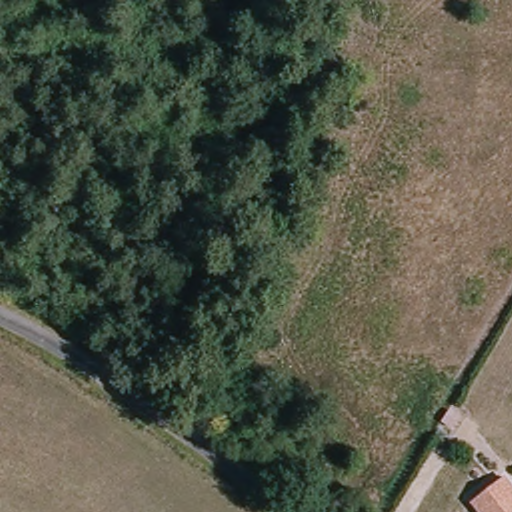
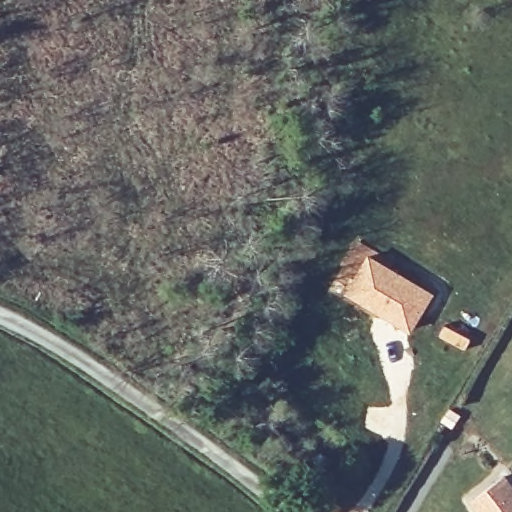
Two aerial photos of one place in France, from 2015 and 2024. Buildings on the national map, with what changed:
new [(368,252),(435,293),(411,333),(343,292),(368,252)]
unchanged [(506,475),(512,484),(512,512),(478,512),(471,502),(506,475)]

